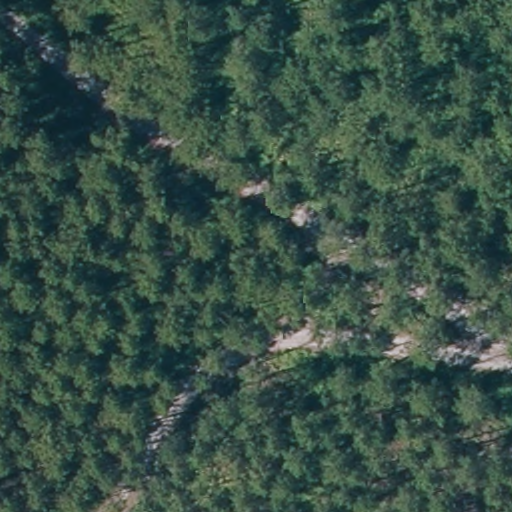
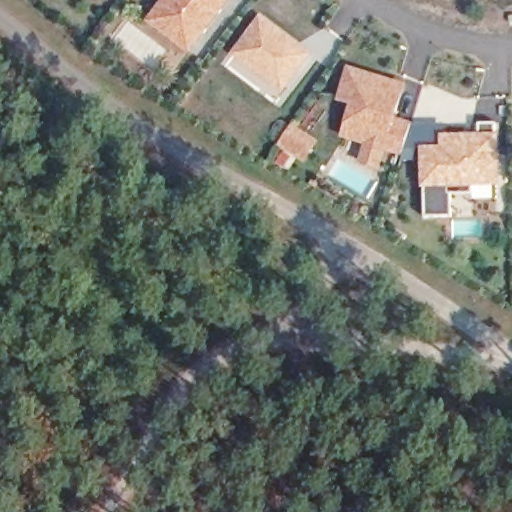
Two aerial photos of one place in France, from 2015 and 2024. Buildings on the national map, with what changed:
new [(148,23),(165,0),(231,0),(189,56),(148,23)]
new [(231,55),(260,17),(312,56),(283,94),(231,55)]
new [(346,134),(356,101),(342,97),(352,67),(406,84),(396,117),(414,122),(405,152),(386,146),(380,165),(364,160),(370,141),(346,134)]
new [(294,123),(319,140),(308,157),(283,141),(294,123)]
new [(500,134),(498,187),(450,188),(451,217),(426,217),(425,189),(423,189),(421,150),(406,147),(413,126),(444,125),(445,136),(500,134)]

